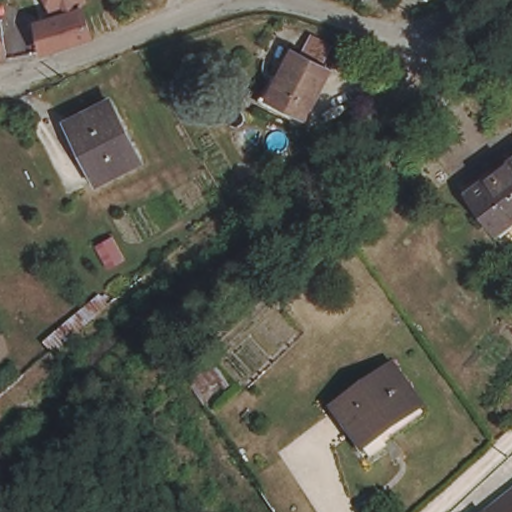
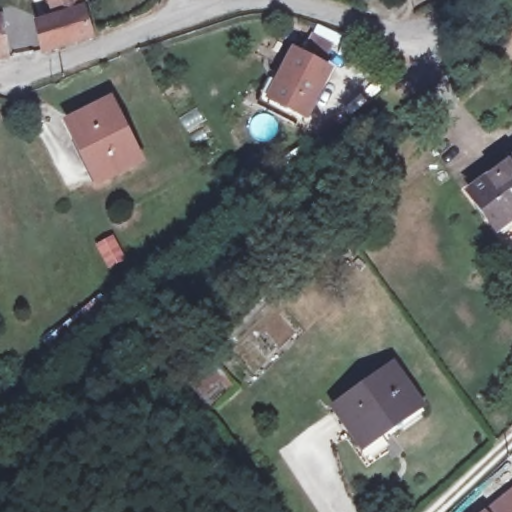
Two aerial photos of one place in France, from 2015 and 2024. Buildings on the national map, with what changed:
unchanged [(45,0),(82,0),(49,14),(45,0)]
unchanged [(90,31),(50,50),(40,23),(83,4),(90,31)]
unchanged [(8,55),(0,55),(0,12),(3,12),(8,55)]
unchanged [(310,35),(335,45),(323,67),(299,56),(310,35)]
unchanged [(328,70),(303,119),(262,99),(287,51),(328,70)]
unchanged [(138,166),(96,189),(67,127),(108,106),(138,166)]
unchanged [(467,194),(512,161),(512,220),(495,232),(467,194)]
unchanged [(383,219),(358,246),(345,235),(370,207),(383,219)]
unchanged [(418,406),(358,447),(329,409),(389,367),(418,406)]
unchanged [(512,494),(512,512),(492,512),(512,494)]

